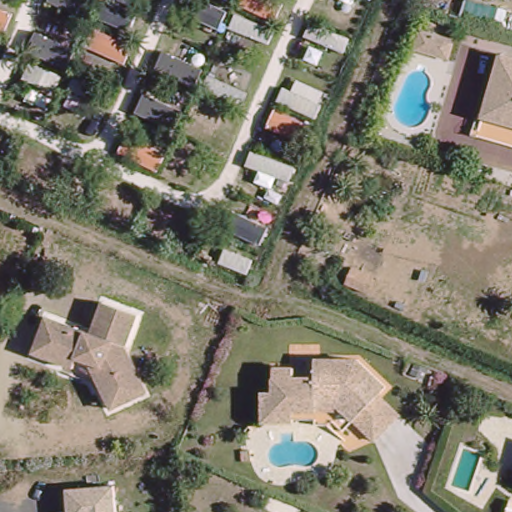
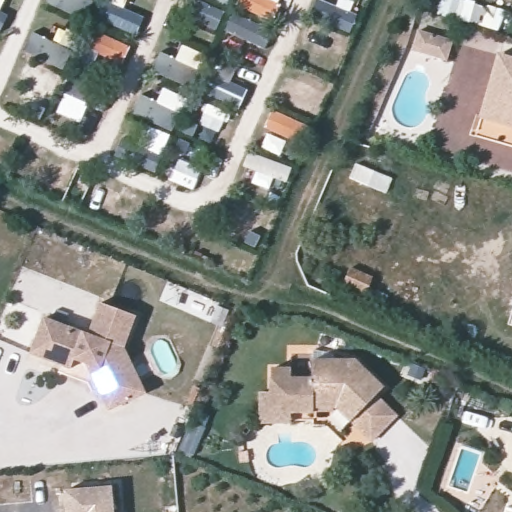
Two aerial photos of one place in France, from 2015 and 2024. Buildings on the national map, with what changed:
unchanged [(457,38),(452,57),(418,47),(424,28),(457,38)]
unchanged [(477,135),(500,55),(512,59),(512,146),(477,135)]
unchanged [(142,396),(115,413),(93,377),(62,366),(32,355),(45,319),(90,336),(102,304),(137,316),(124,351),(149,391),(142,396)]
unchanged [(337,434),(335,432),(334,431),(332,429),(327,435),(322,429),(309,428),(256,426),(257,395),(267,395),(267,373),(287,373),(288,383),(309,382),(310,363),(352,363),(380,391),(393,412),(368,440),(353,419),(348,425),(337,434)]
unchanged [(115,487),(117,512),(69,512),(68,491),(115,487)]

